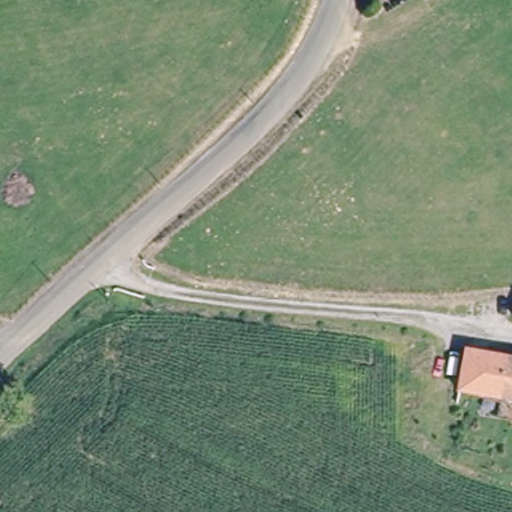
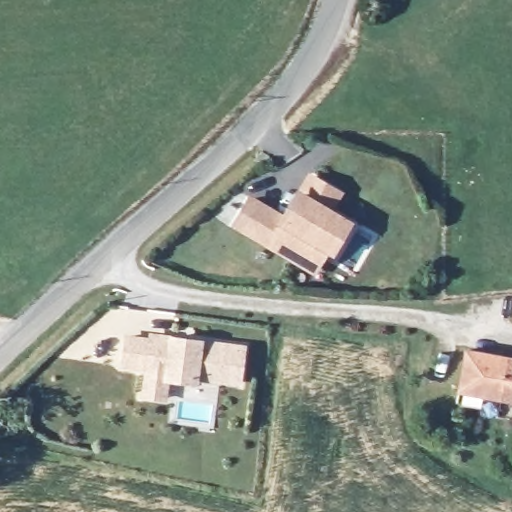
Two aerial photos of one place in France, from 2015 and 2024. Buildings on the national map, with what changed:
new [(344,194),(335,211),(353,221),(331,257),(327,254),(313,276),(228,229),(248,194),(279,214),(296,186),(299,187),(308,171),(344,194)]
new [(148,337),(148,332),(167,333),(203,336),(202,340),(246,345),(241,389),(166,380),(163,398),(139,397),(143,369),(119,367),(123,332),(148,337)]
unchanged [(482,393),(460,390),(465,352),(512,359),(512,398),(482,393)]

